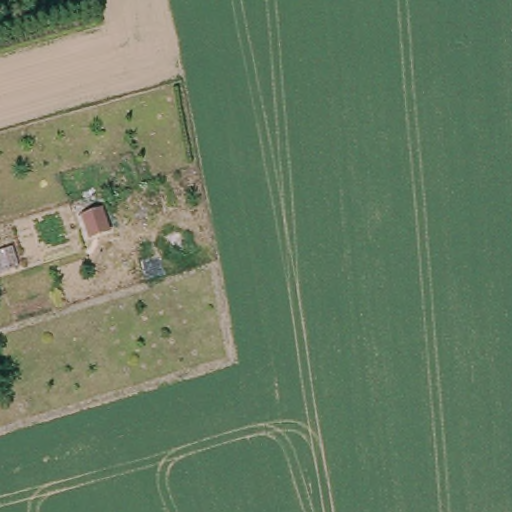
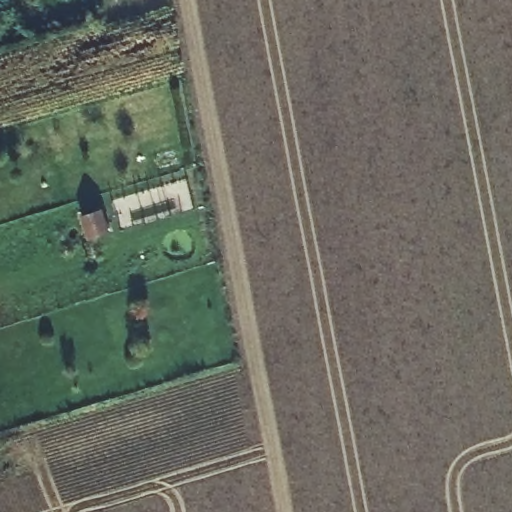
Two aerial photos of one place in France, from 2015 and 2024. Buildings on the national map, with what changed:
unchanged [(99,207),(104,233),(86,237),(80,212),(99,207)]

